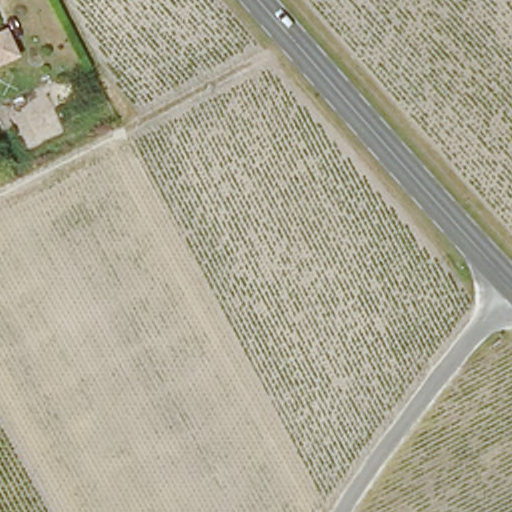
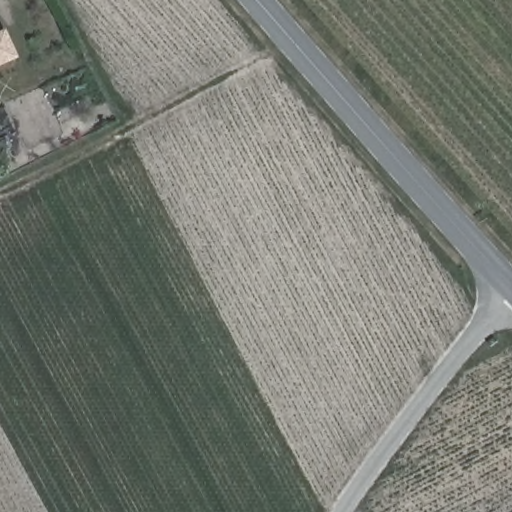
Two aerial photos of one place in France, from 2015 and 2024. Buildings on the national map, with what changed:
unchanged [(6,29),(20,62),(0,71),(0,32),(6,29)]

